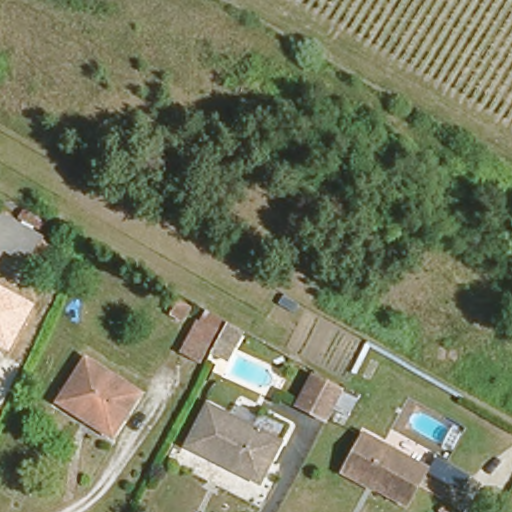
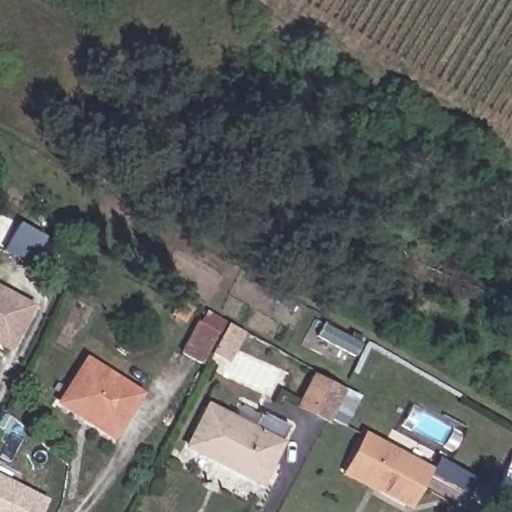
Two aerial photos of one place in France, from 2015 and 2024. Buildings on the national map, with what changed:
unchanged [(0,217),(47,243),(33,269),(9,255),(2,266),(0,265),(0,217)]
unchanged [(0,347),(0,286),(35,304),(10,352),(0,347)]
unchanged [(204,355),(186,346),(201,314),(219,323),(204,355)]
unchanged [(79,355),(131,387),(104,431),(77,415),(82,406),(57,391),(79,355)]
unchanged [(341,383),(326,412),(298,398),(313,369),(341,383)]
unchanged [(207,402),(251,424),(259,408),(288,422),(260,478),(187,442),(207,402)]
unchanged [(407,500),(391,491),(376,483),(373,488),(340,471),(345,462),(362,429),(409,453),(410,454),(427,463),(407,500)]
new [(40,512),(0,512),(0,474),(47,498),(40,512)]

